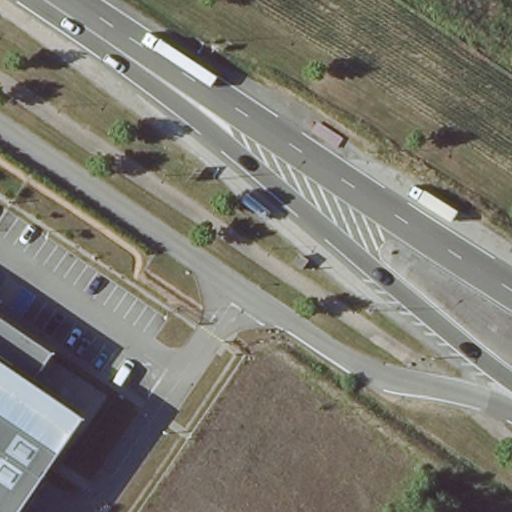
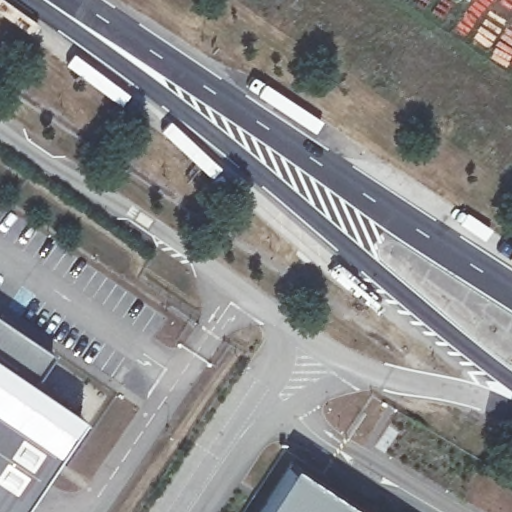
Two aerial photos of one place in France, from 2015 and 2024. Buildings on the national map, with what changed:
unchanged [(30,380),(82,417),(17,512),(0,512),(0,319),(47,350),(30,380)]
new [(360,512),(261,512),(291,467),(360,512)]

